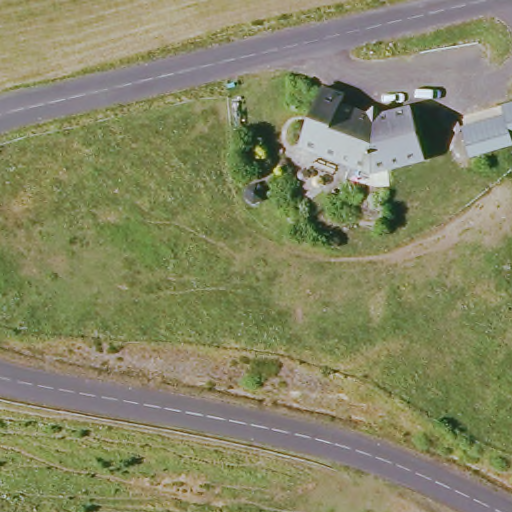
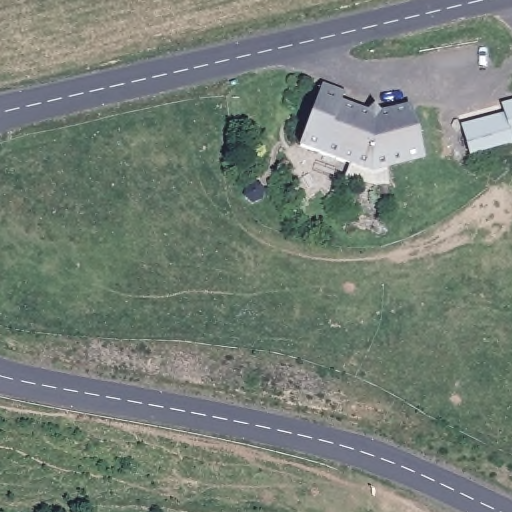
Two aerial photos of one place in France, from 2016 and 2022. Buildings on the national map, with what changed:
unchanged [(417,161),(367,172),(294,141),(322,85),(342,95),(339,104),(368,118),(406,109),(417,161)]
unchanged [(504,148),(463,159),(458,140),(501,129),(498,117),(512,115),(512,135),(503,137),(504,148)]

